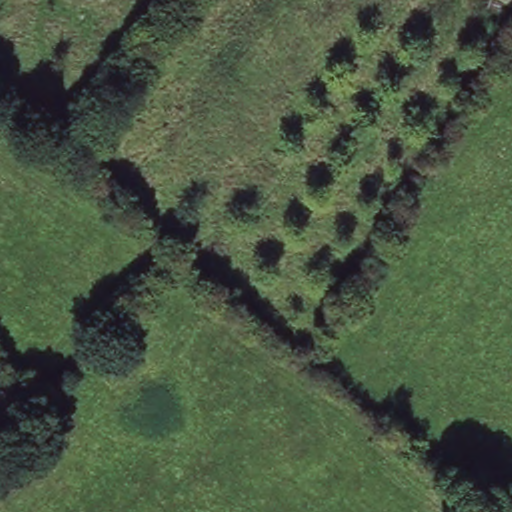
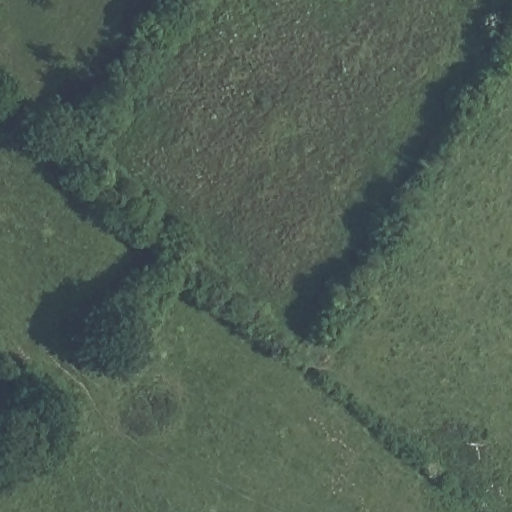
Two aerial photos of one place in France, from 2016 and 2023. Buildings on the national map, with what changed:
[]

